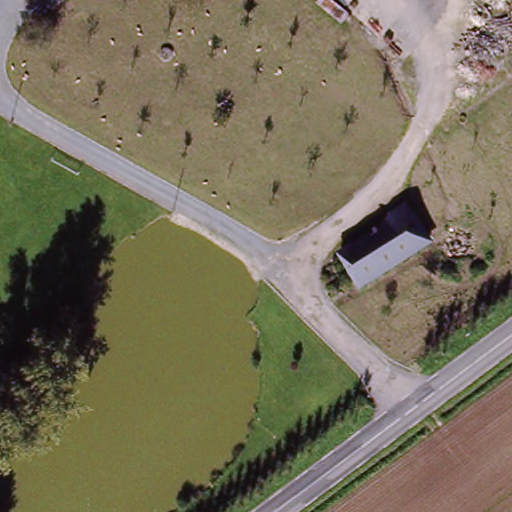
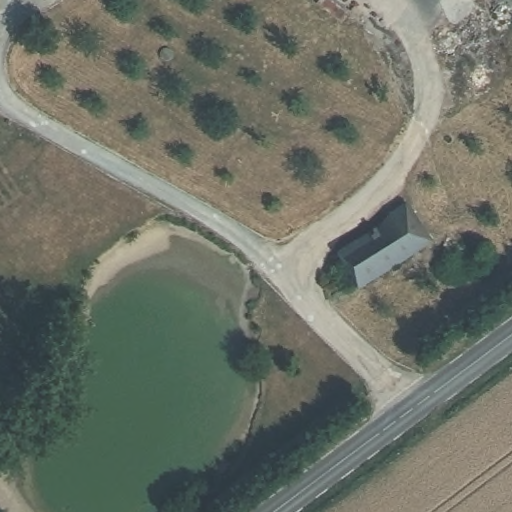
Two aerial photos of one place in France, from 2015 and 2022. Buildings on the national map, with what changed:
unchanged [(390,221),(406,211),(430,249),(359,293),(340,263),(395,229),(390,221)]
unchanged [(21,380),(10,392),(0,382),(0,360),(21,380)]

